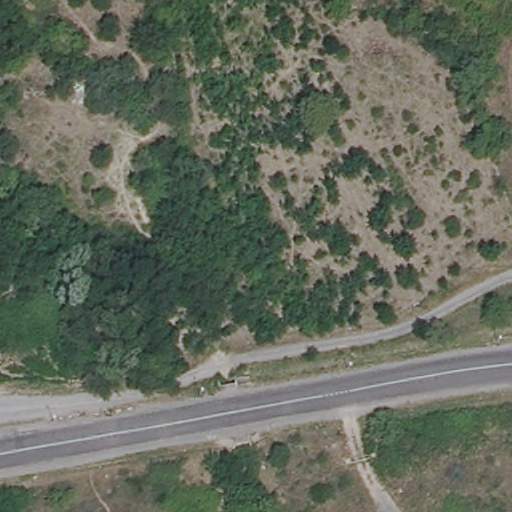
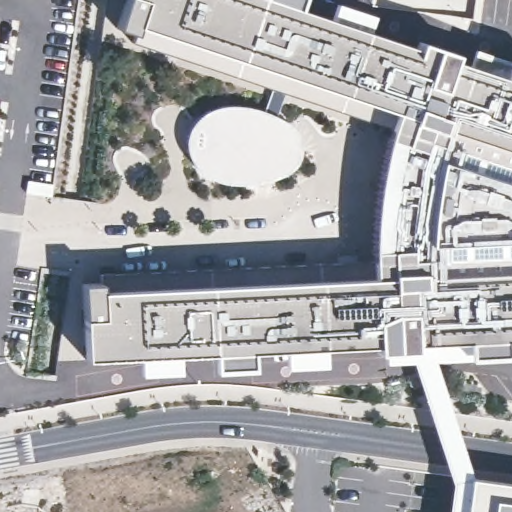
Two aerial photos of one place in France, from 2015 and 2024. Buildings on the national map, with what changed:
new [(294,0),(313,0),(415,34),(417,30),(458,45),(455,50),(476,58),(472,67),(512,79),(512,349),(415,353),(415,350),(377,351),(377,355),(291,360),(291,352),(276,352),(276,359),(268,360),(268,351),(85,361),(81,283),(101,283),(101,274),(231,268),(231,256),(365,249),(366,239),(367,221),(370,193),(377,167),(385,138),(220,82),(225,69),(134,41),(133,44),(112,37),(107,25),(117,29),(126,3),(115,1),(115,0),(272,0),(291,6),(294,0)]
new [(239,105),(253,107),(264,111),(269,99),(280,102),(275,115),(292,125),(296,130),(300,142),(301,155),(298,165),(290,172),(279,178),(258,183),(231,185),(219,182),(207,176),(198,170),(191,161),(187,151),(186,141),(188,131),(194,121),(200,115),(209,110),(219,107),(231,105),(239,105)]
new [(470,484),(470,477),(512,484),(512,512),(448,512),(452,482),(470,484)]

